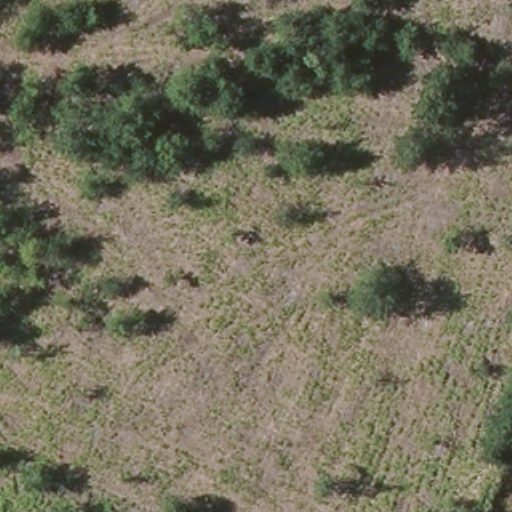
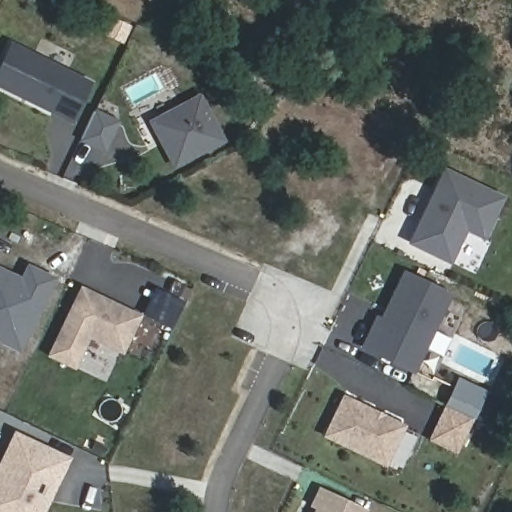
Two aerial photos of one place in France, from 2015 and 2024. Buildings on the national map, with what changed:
new [(94,80),(73,124),(0,89),(0,66),(10,42),(94,80)]
new [(173,170),(148,120),(202,92),(226,141),(173,170)]
new [(414,241),(424,219),(429,221),(434,208),(430,206),(445,171),(501,199),(484,235),(465,227),(450,260),(414,241)]
new [(0,343),(0,266),(20,275),(27,262),(56,278),(21,353),(0,343)]
new [(412,371),(364,348),(371,329),(376,331),(405,274),(449,295),(412,371)]
new [(121,351),(88,336),(73,366),(50,355),(82,290),(138,316),(121,351)]
new [(343,394),(407,424),(386,467),(324,436),(343,394)]
new [(458,454),(429,439),(445,405),(474,419),(458,454)]
new [(11,433),(63,458),(54,478),(43,500),(37,512),(0,512),(0,456),(11,433)]
new [(318,488),(367,509),(366,512),(313,512),(315,507),(311,505),(318,488)]

